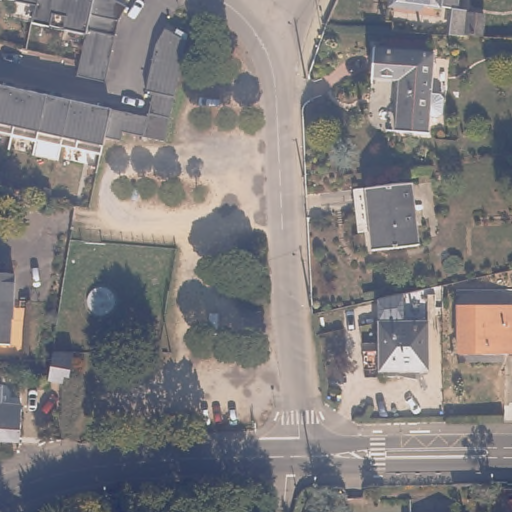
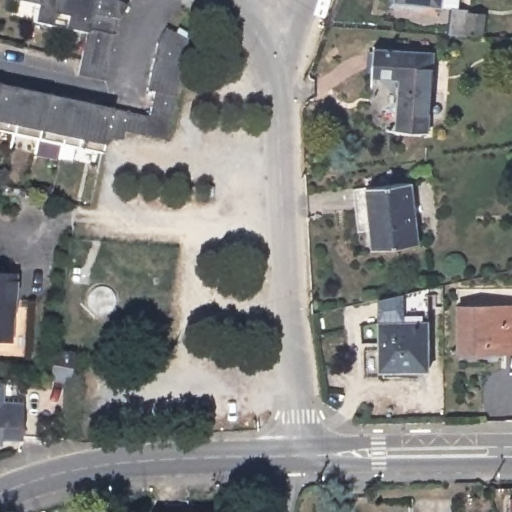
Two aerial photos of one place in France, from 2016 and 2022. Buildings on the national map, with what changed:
unchanged [(115,16),(102,81),(71,76),(80,29),(27,19),(31,1),(28,0),(113,0),(121,5),(115,16)]
unchanged [(415,0),(457,0),(457,5),(415,0)]
unchanged [(465,33),(454,31),(457,5),(468,6),(468,11),(484,13),(482,35),(465,33)]
unchanged [(149,121),(155,96),(147,94),(157,45),(165,31),(174,36),(177,30),(187,36),(163,145),(120,136),(118,146),(103,142),(99,159),(0,137),(0,89),(149,121)]
unchanged [(439,51),(436,88),(445,89),(448,93),(447,108),(443,111),(434,110),(432,127),(395,124),(400,76),(372,72),(374,45),(439,51)]
unchanged [(414,183),(422,243),(378,249),(375,231),(363,231),(358,187),(414,183)]
unchanged [(2,273),(2,306),(0,306),(0,272),(2,273)]
unchanged [(90,290),(94,288),(98,287),(101,288),(105,290),(108,293),(110,297),(111,303),(110,306),(107,311),(103,313),(100,314),(96,314),(93,313),(89,312),(87,309),(85,305),(85,302),(85,298),(86,295),(88,292),(90,290)]
unchanged [(428,287),(429,368),(380,369),(379,299),(428,287)]
unchanged [(512,298),(512,346),(448,347),(448,298),(512,298)]
unchanged [(51,374),(54,351),(74,352),(71,376),(62,375),(62,379),(51,378),(51,374)]
unchanged [(0,382),(0,383),(1,383),(1,384),(1,385),(3,385),(4,403),(24,402),(24,438),(4,438),(4,443),(0,443),(0,382)]
unchanged [(512,495),(512,512),(506,512),(507,495),(512,495)]
unchanged [(159,508),(181,508),(181,512),(159,512),(159,508)]

